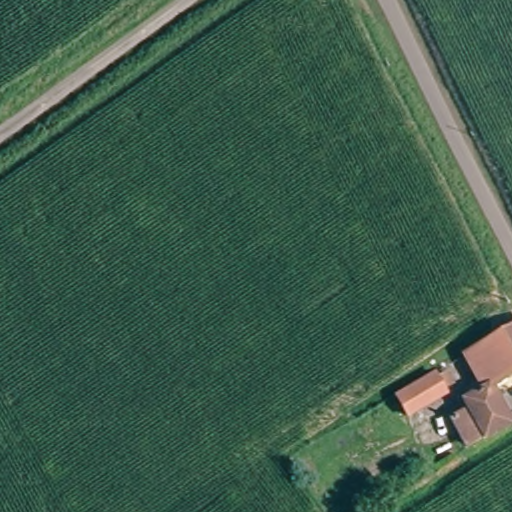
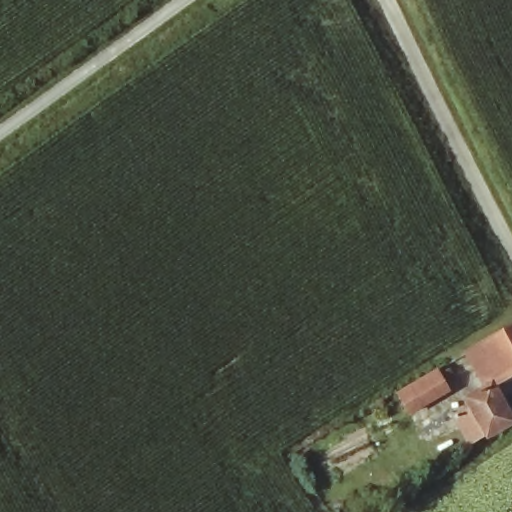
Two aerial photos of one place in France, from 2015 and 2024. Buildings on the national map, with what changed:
unchanged [(478,412),(468,395),(488,383),(466,348),(512,321),(512,370),(495,380),(512,409),(512,415),(488,429),(475,437),(465,420),(478,412)]
unchanged [(449,389),(411,410),(407,404),(399,409),(395,402),(403,397),(400,392),(437,370),(449,389)]

